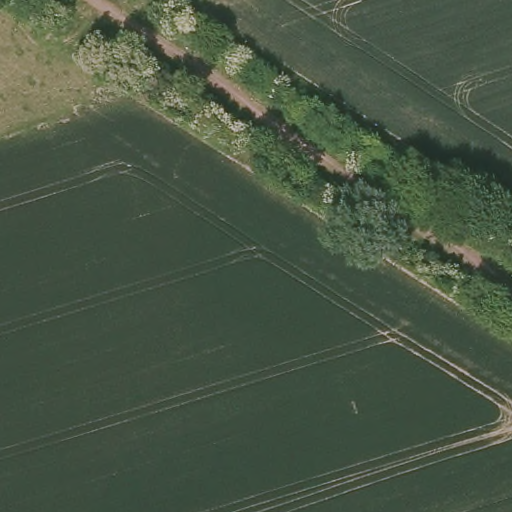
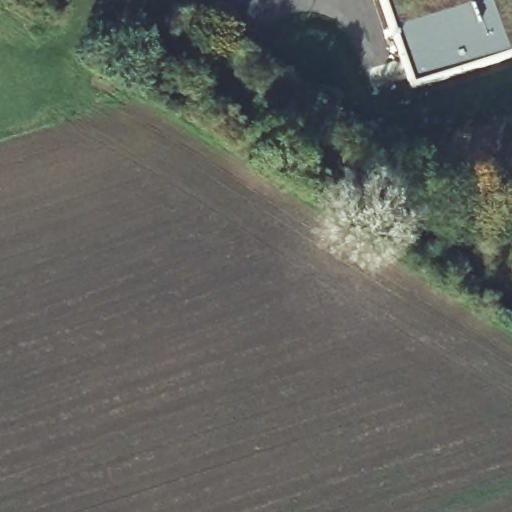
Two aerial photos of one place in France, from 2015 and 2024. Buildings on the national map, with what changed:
new [(413,86),(384,0),(512,0),(512,52),(413,86)]

